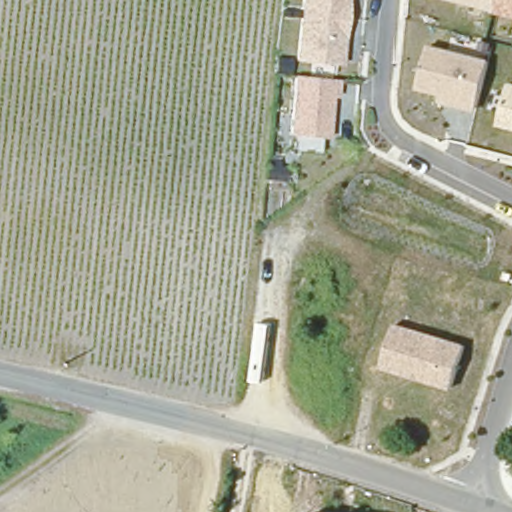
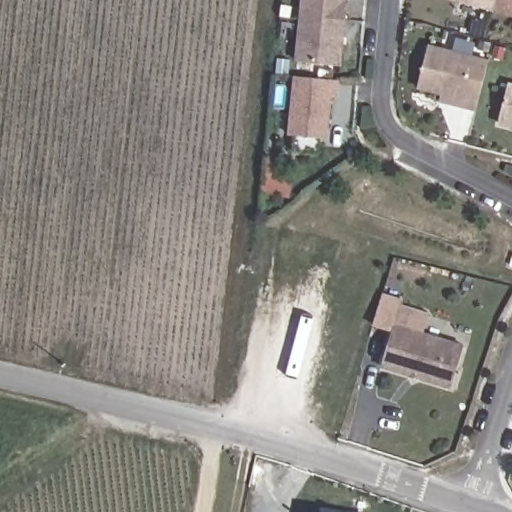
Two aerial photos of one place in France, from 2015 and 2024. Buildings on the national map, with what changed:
unchanged [(296,60),(302,0),(351,0),(345,65),(296,60)]
unchanged [(447,0),(512,0),(512,18),(447,0)]
unchanged [(477,114),(441,105),(444,96),(419,89),(431,44),(489,60),(477,114)]
unchanged [(341,100),(332,100),(329,140),(289,136),(295,76),(342,80),(341,100)]
unchanged [(498,127),(510,80),(512,81),(512,131),(498,127)]
new [(395,322),(392,330),(375,325),(385,292),(405,298),(403,305),(431,312),(425,331),(395,322)]
unchanged [(381,368),(395,322),(468,345),(452,391),(381,368)]

